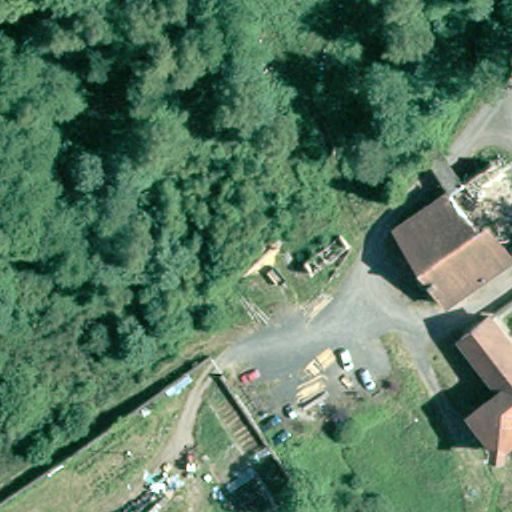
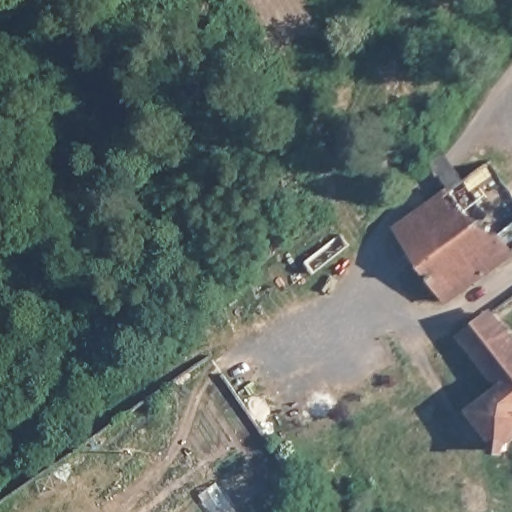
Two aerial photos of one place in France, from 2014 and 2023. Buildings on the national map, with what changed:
unchanged [(430,278),(423,283),(415,274),(425,268),(393,226),(491,156),(497,163),(512,184),(512,249),(445,297),(430,278)]
unchanged [(340,235),(350,246),(312,275),(303,264),(340,235)]
unchanged [(497,441),(495,451),(482,451),(483,438),(462,411),(471,405),(493,388),(452,336),(480,313),(512,354),(512,429),(498,438),(497,441)]

